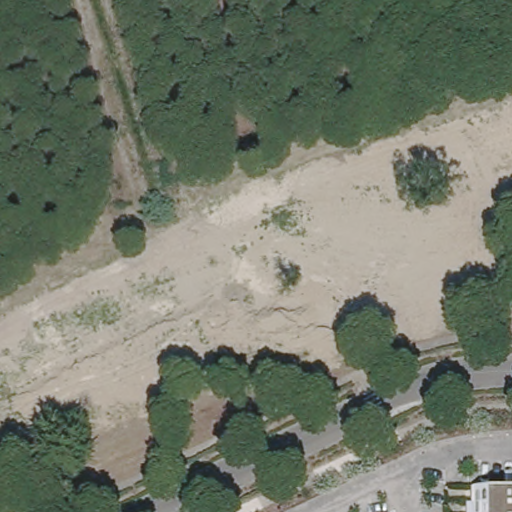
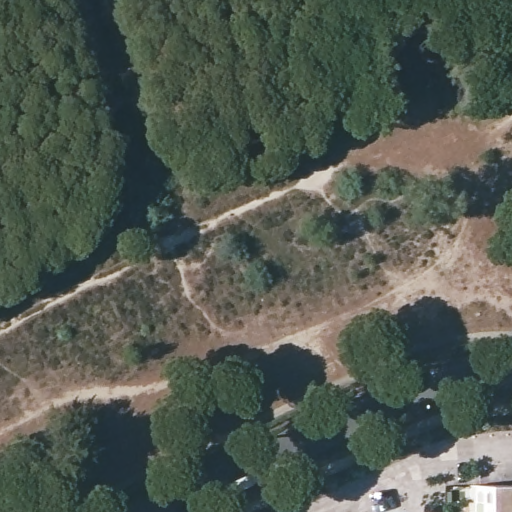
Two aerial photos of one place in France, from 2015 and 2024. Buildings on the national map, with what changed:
unchanged [(477,488),(512,489),(512,512),(476,512),(477,488)]

